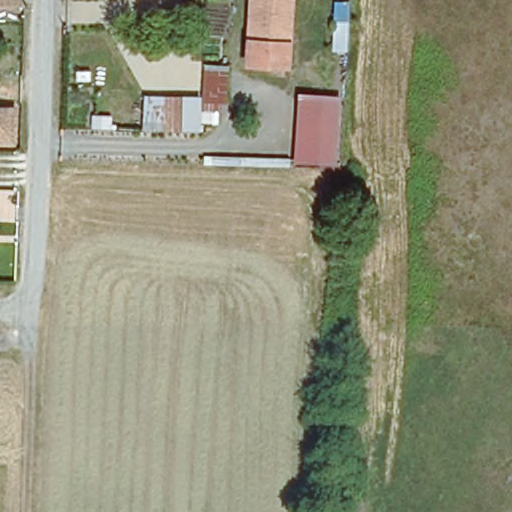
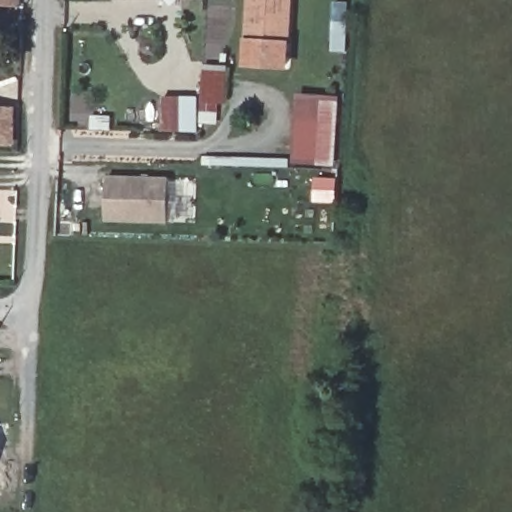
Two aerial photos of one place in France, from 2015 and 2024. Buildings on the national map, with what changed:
unchanged [(0,1),(0,0),(26,0),(26,2),(0,1)]
unchanged [(290,19),(250,19),(252,0),(292,0),(290,19)]
new [(332,3),(350,4),(347,50),(330,49),(332,3)]
unchanged [(247,63),(249,45),(250,19),(290,19),(288,47),(287,65),(247,63)]
unchanged [(206,72),(226,73),(225,105),(205,104),(206,72)]
unchanged [(143,95),(189,96),(188,130),(142,129),(143,95)]
unchanged [(331,162),(300,161),(303,106),(333,108),(331,162)]
unchanged [(15,111),(14,142),(0,142),(0,110),(15,111)]
unchanged [(95,126),(95,119),(107,119),(106,126),(95,126)]
new [(107,178),(171,179),(170,224),(105,222),(107,178)]

